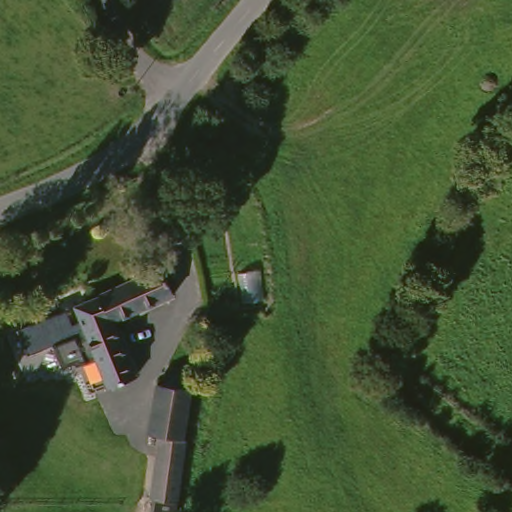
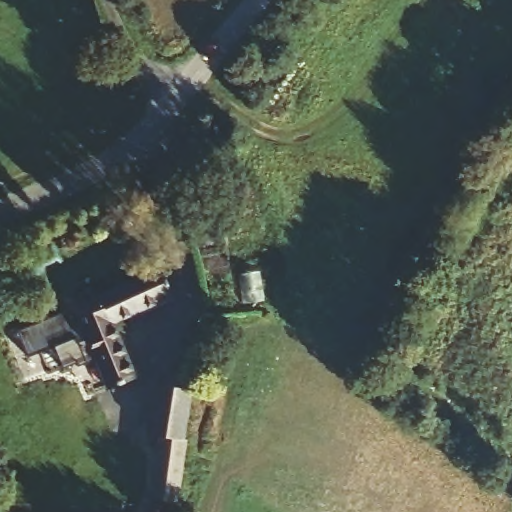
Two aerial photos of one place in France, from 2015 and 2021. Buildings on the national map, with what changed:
unchanged [(110,388),(87,327),(84,328),(74,302),(100,292),(166,265),(176,293),(112,322),(134,377),(110,388)]
unchanged [(190,431),(194,432),(184,512),(154,512),(164,432),(155,430),(161,378),(199,379),(190,431)]

